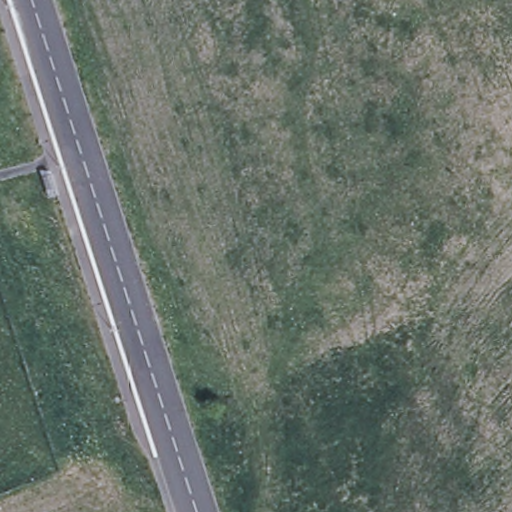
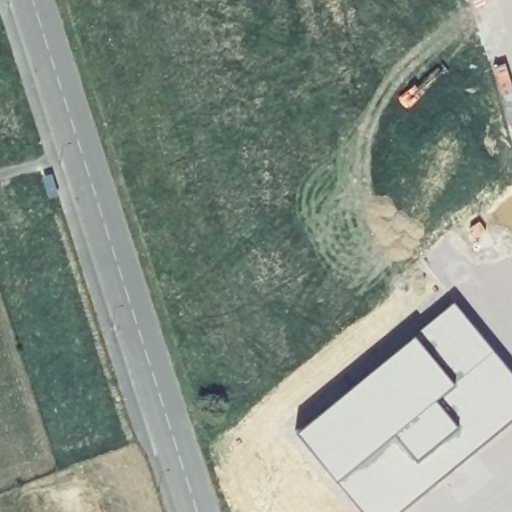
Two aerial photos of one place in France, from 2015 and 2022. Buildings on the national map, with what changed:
new [(512,374),(512,423),(403,512),(364,512),(299,432),(455,303),(512,374)]

